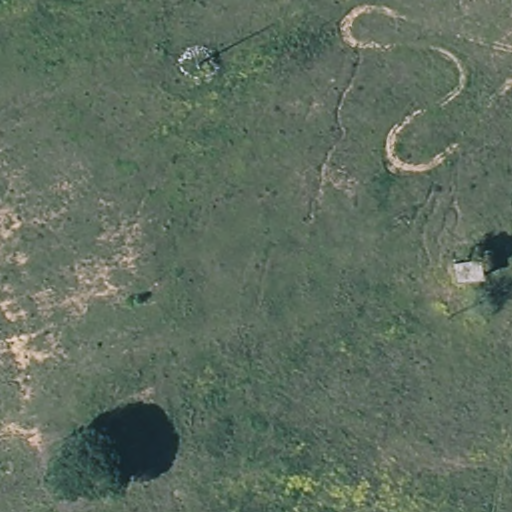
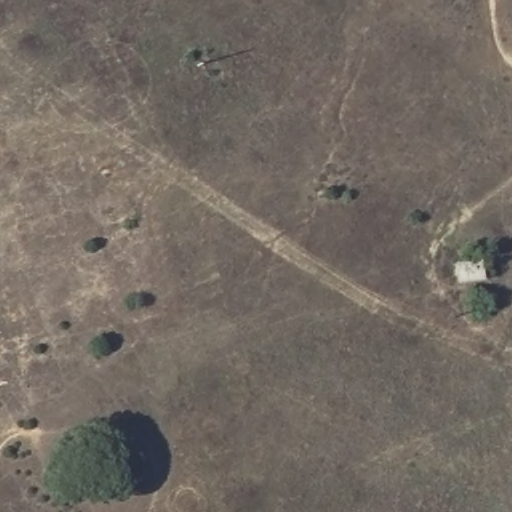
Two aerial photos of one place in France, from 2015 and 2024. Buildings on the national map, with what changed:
unchanged [(482,278),(457,281),(455,262),(479,257),(482,278)]

